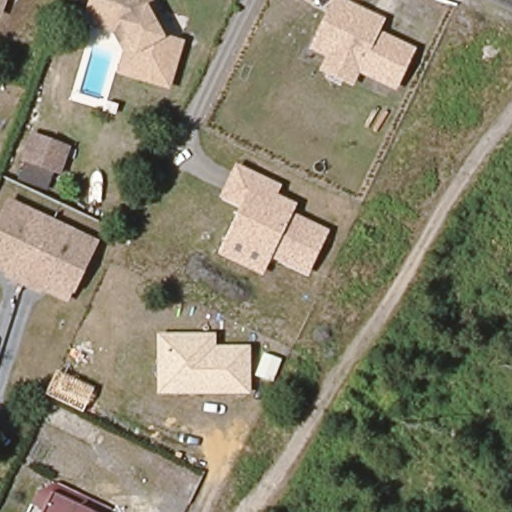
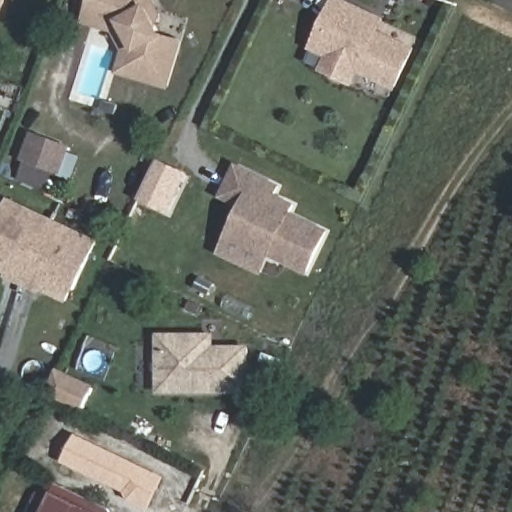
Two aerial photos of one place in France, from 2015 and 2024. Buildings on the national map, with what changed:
unchanged [(0,11),(0,0),(4,0),(0,11)]
unchanged [(162,36),(180,42),(165,90),(126,77),(133,55),(117,22),(88,13),(92,0),(142,0),(162,36)]
unchanged [(412,50),(396,87),(311,49),(334,0),(341,0),(374,15),(367,29),(412,50)]
unchanged [(19,180),(25,160),(35,134),(71,146),(61,174),(55,171),(47,191),(19,180)]
unchanged [(281,184),(277,195),(298,202),(294,212),(332,230),(310,275),(272,259),(263,276),(217,255),(240,207),(221,199),(237,164),(281,184)]
new [(159,165),(186,180),(167,215),(140,200),(159,165)]
unchanged [(101,242),(70,305),(0,272),(0,216),(8,199),(101,242)]
unchanged [(216,335),(216,346),(251,346),(250,395),(157,395),(157,333),(216,335)]
new [(57,371),(92,390),(81,412),(46,394),(57,371)]
new [(61,462),(74,435),(162,478),(150,512),(126,500),(129,493),(61,462)]
unchanged [(43,512),(52,495),(86,512),(43,512)]

